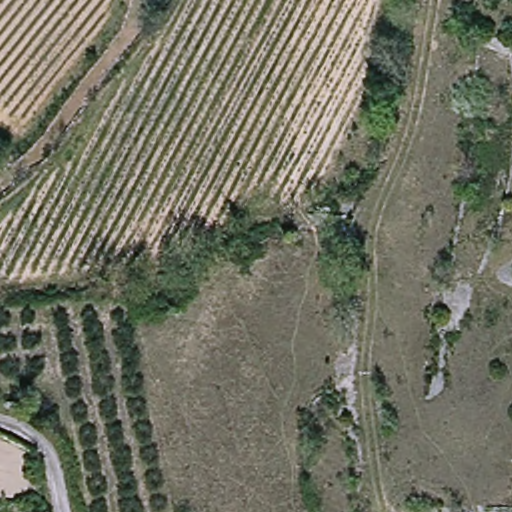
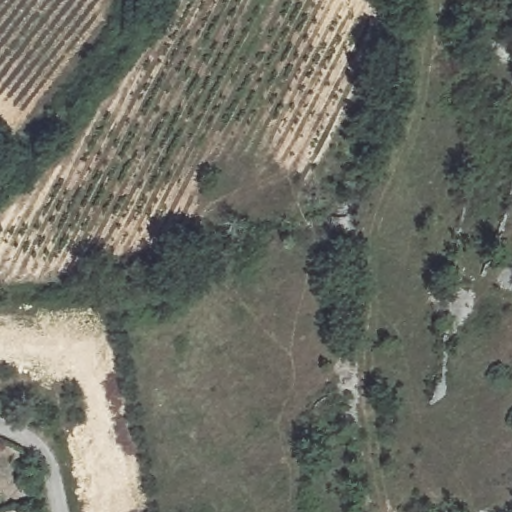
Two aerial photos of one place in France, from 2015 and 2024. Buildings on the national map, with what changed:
[]

